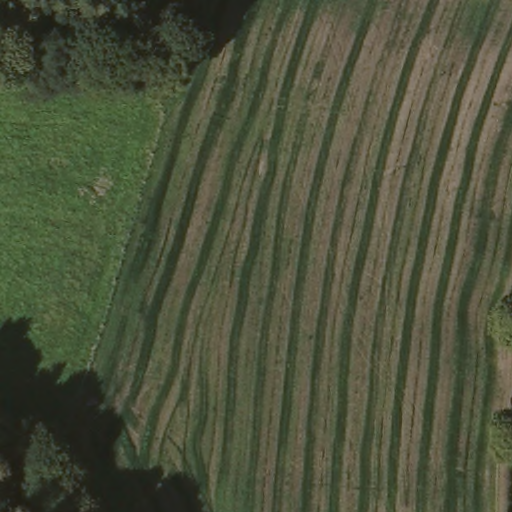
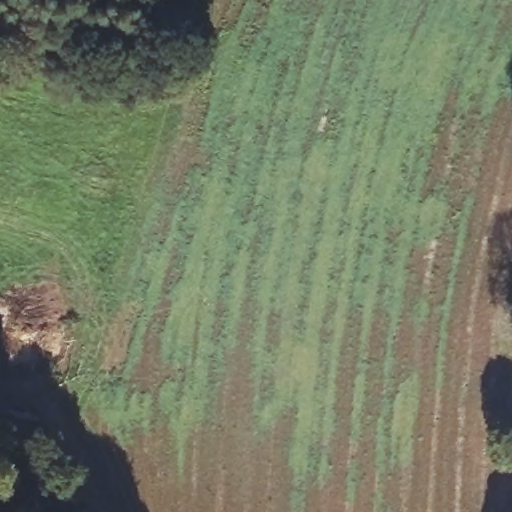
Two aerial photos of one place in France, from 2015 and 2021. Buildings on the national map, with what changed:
[]

